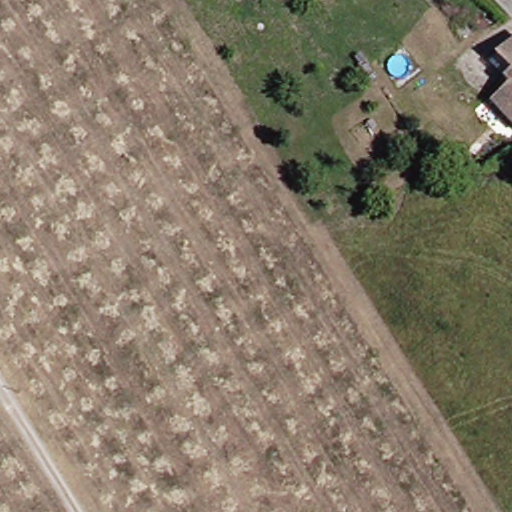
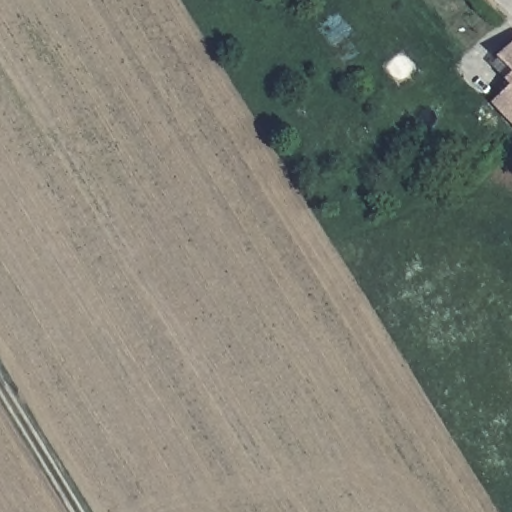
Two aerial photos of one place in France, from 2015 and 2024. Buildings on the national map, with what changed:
unchanged [(488,99),(507,84),(487,59),(512,40),(512,122),(488,99)]

